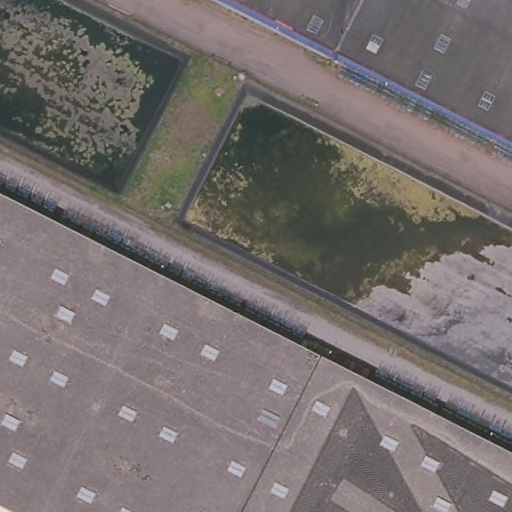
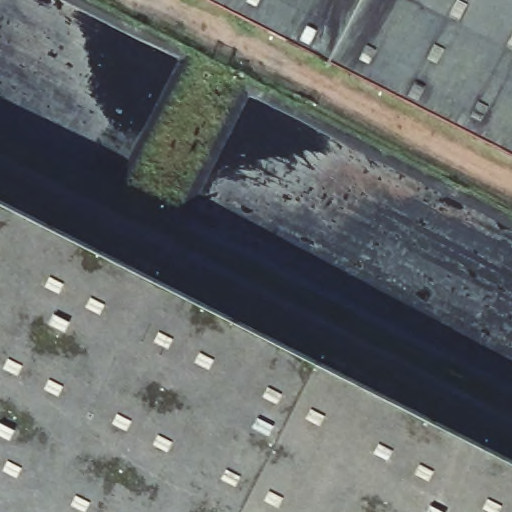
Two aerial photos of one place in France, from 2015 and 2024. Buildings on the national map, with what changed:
unchanged [(512,0),(512,152),(213,0),(512,0)]
unchanged [(512,461),(512,512),(0,512),(0,201),(512,461)]

